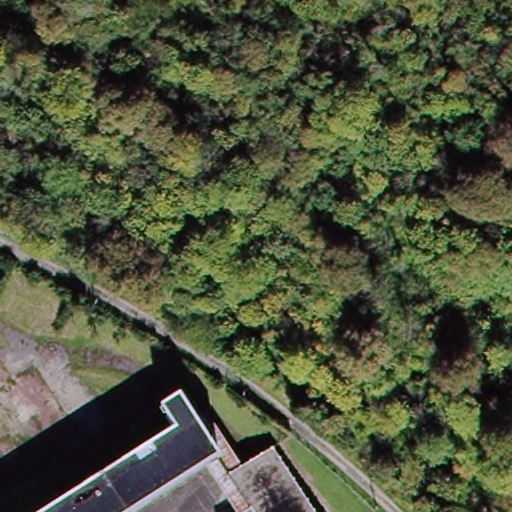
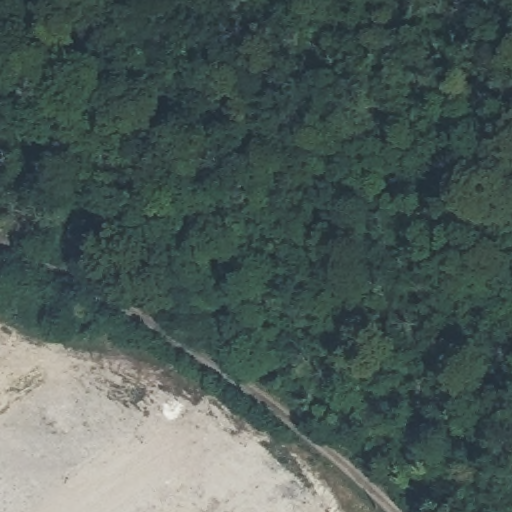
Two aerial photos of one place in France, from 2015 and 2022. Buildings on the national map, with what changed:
demolished [(160,412),(179,400),(194,423),(219,462),(205,471),(141,512),(52,512),(174,433),(160,412)]
demolished [(248,510),(227,477),(241,469),(271,451),(310,512),(245,512),(248,510)]

